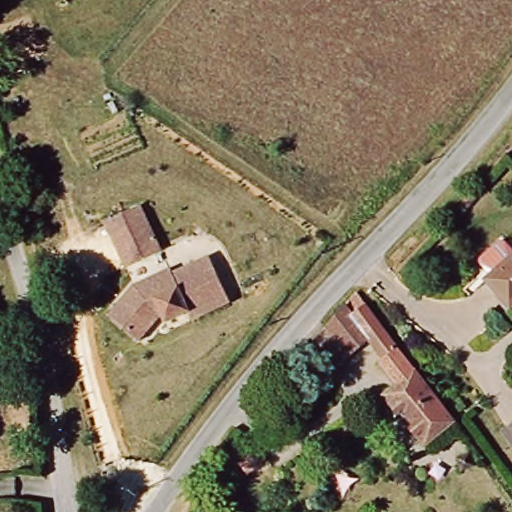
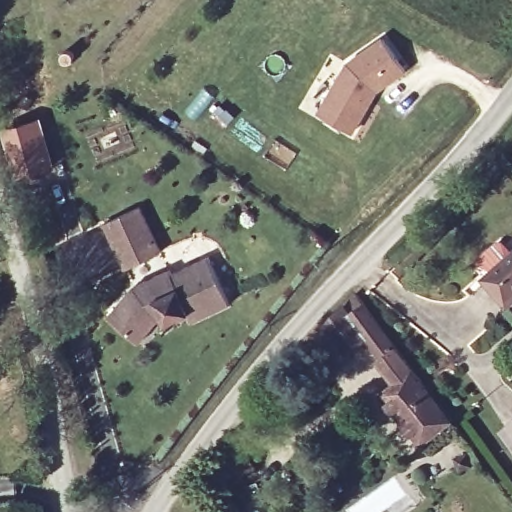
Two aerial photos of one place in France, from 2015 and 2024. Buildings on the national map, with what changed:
new [(354,130),(321,111),(350,60),(385,36),(407,68),(381,85),(372,99),(354,130)]
new [(55,166),(18,178),(3,129),(42,117),(55,166)]
unchanged [(103,223),(140,207),(160,252),(123,269),(103,223)]
unchanged [(135,284),(206,254),(230,305),(194,322),(189,313),(165,325),(161,317),(139,341),(107,317),(135,284)]
unchanged [(491,285),(512,266),(512,309),(491,285)]
unchanged [(398,388),(370,344),(333,379),(307,354),(360,297),(455,424),(425,449),(385,399),(398,388)]
unchanged [(504,429),(512,422),(512,439),(504,429)]
unchanged [(241,456),(252,471),(237,482),(226,467),(241,456)]

